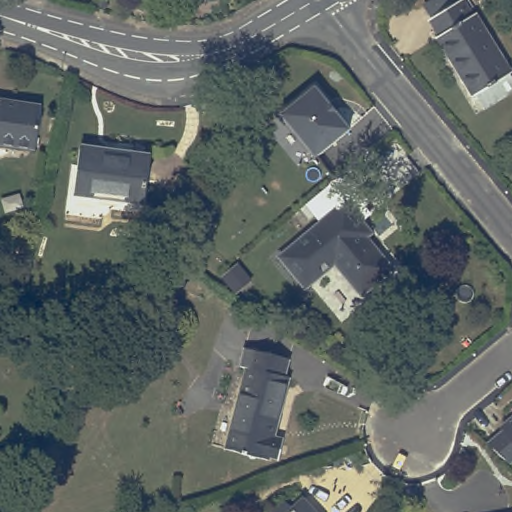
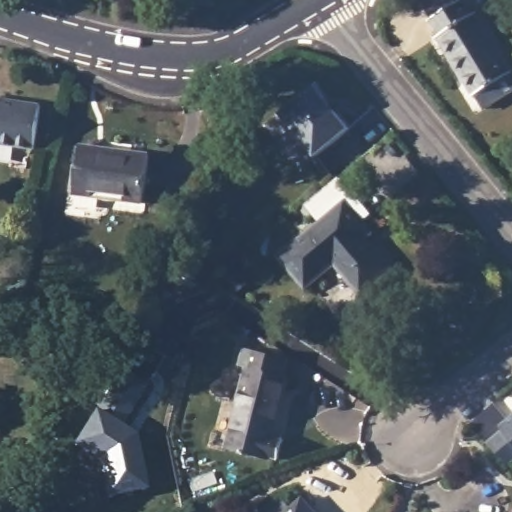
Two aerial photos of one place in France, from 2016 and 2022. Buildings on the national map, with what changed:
unchanged [(432,18),(424,5),(432,0),(464,0),(474,15),(476,14),(512,72),(509,74),(512,79),(512,91),(483,109),(474,95),(471,96),(436,39),(438,37),(428,20),(432,18)]
unchanged [(320,85),(353,129),(319,155),(286,111),(320,85)]
unchanged [(5,99),(59,105),(54,150),(1,142),(0,148),(0,108),(4,109),(5,99)]
unchanged [(247,115),(253,109),(259,115),(253,120),(247,115)]
unchanged [(73,195),(79,145),(149,155),(143,205),(73,195)]
unchanged [(278,256),(345,201),(370,233),(366,236),(392,268),(360,295),(334,265),(305,288),(278,256)]
unchanged [(108,351),(118,333),(124,338),(114,355),(108,351)]
unchanged [(226,445),(247,363),(240,361),(245,343),(288,355),(284,371),(290,372),(274,432),(283,435),(279,454),(270,452),(268,456),(226,445)]
new [(76,440),(113,376),(105,371),(111,362),(119,367),(145,385),(121,425),(136,435),(148,490),(110,497),(100,455),(76,440)]
unchanged [(510,465),(487,445),(503,431),(500,428),(512,418),(512,463),(510,465)]
unchanged [(288,506),(301,495),(315,512),(267,512),(281,498),(288,506)]

